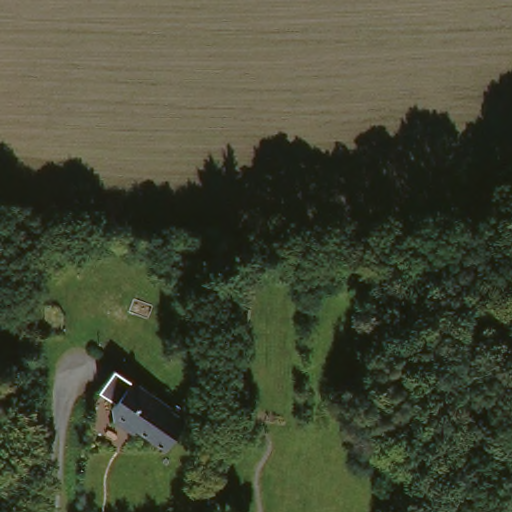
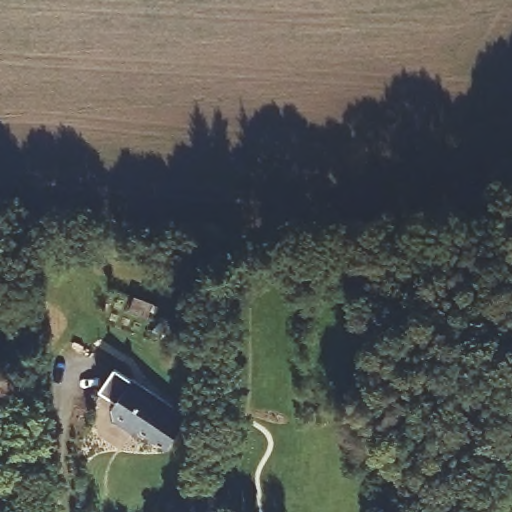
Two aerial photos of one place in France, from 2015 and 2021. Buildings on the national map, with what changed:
unchanged [(178,416),(150,442),(131,422),(128,425),(117,414),(117,402),(144,379),(178,416)]

